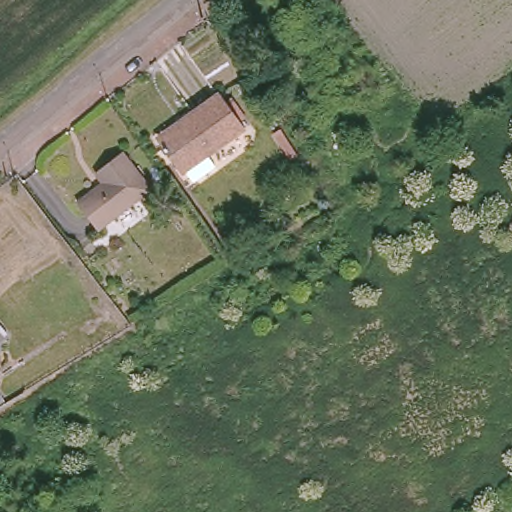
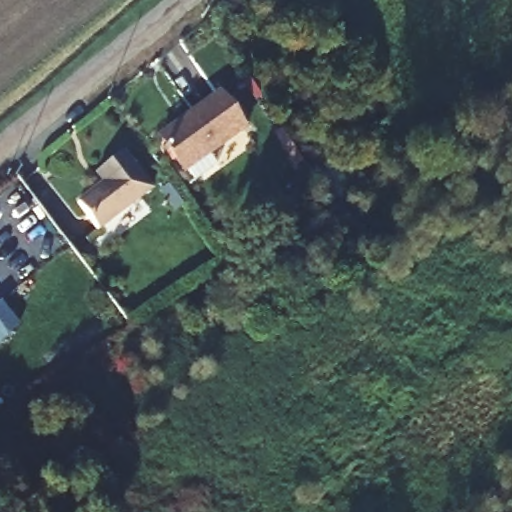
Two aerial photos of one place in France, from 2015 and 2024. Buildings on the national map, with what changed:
unchanged [(221,97),(244,131),(187,172),(163,138),(221,97)]
unchanged [(100,188),(93,179),(121,157),(148,193),(94,233),(74,209),(100,188)]
unchanged [(10,338),(0,346),(0,325),(10,338)]

